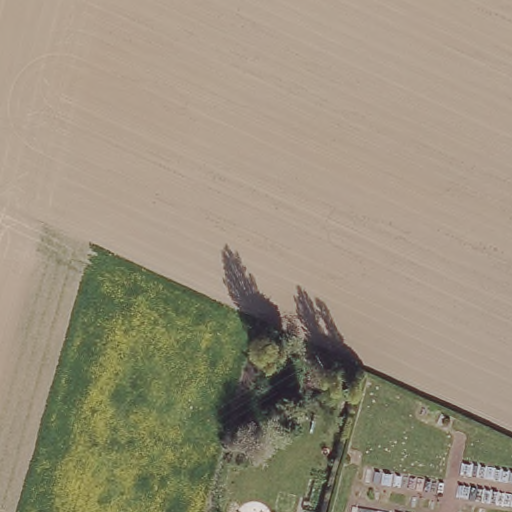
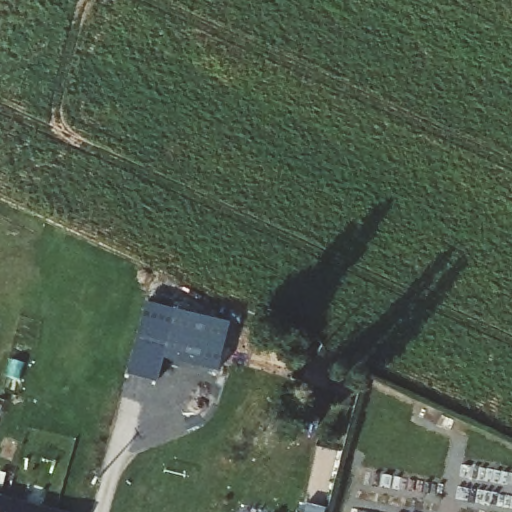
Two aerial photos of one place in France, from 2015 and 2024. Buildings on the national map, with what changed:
new [(215,373),(163,360),(155,386),(124,378),(145,302),(228,325),(215,373)]
new [(48,512),(0,512),(0,499),(48,512)]

